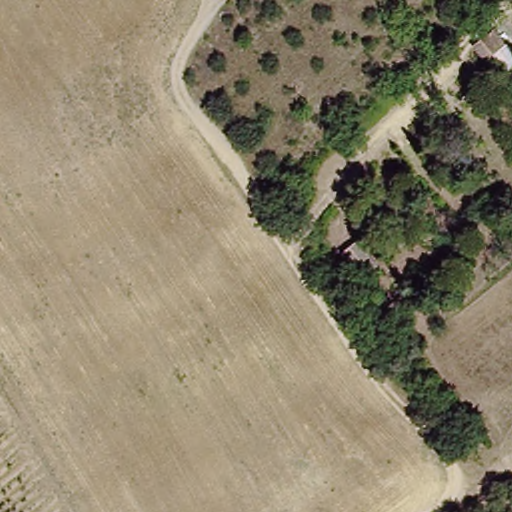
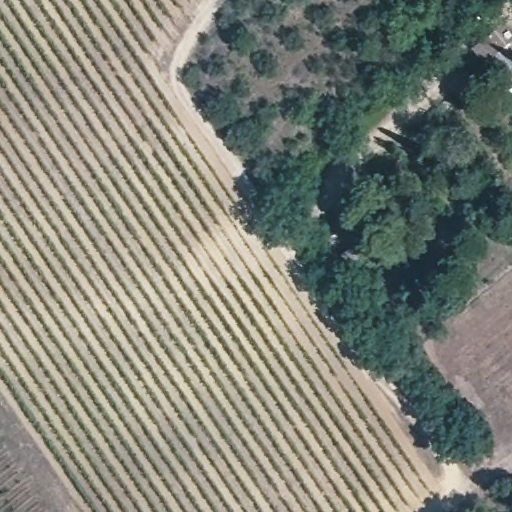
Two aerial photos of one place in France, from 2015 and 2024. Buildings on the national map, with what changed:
unchanged [(512,52),(512,71),(501,82),(475,45),(497,35),(512,52)]
unchanged [(384,265),(365,280),(342,250),(362,236),(384,265)]

